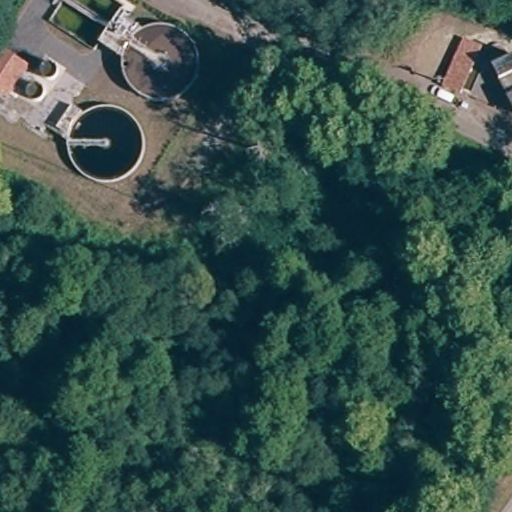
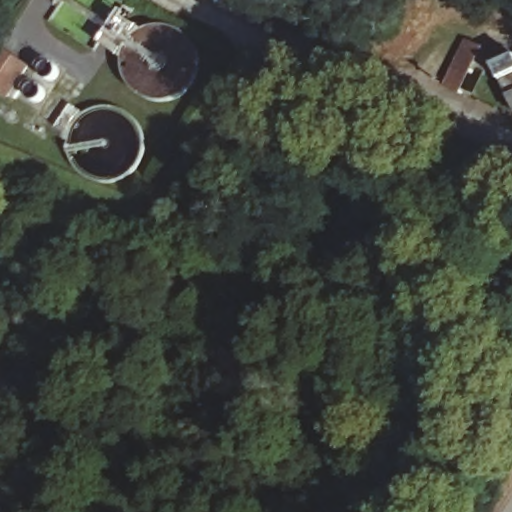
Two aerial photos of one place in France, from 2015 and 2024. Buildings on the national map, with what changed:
unchanged [(119,11),(136,22),(143,27),(140,29),(138,30),(135,32),(134,34),(132,36),(130,38),(129,40),(128,43),(126,45),(125,48),(124,50),(124,53),(123,55),(116,51),(100,40),(119,11)]
unchanged [(497,55),(492,51),(491,48),(492,41),(494,38),(499,35),(506,37),(509,40),(510,44),(510,49),(507,53),(504,55),(497,55)]
unchanged [(481,45),(462,87),(444,80),(464,37),(481,45)]
unchanged [(25,66),(5,94),(0,90),(0,49),(0,48),(25,66)]
unchanged [(68,100),(74,105),(82,110),(80,112),(78,113),(76,115),(75,117),(74,118),(72,120),(71,122),(70,125),(69,127),(68,129),(67,134),(60,127),(53,121),(68,100)]

